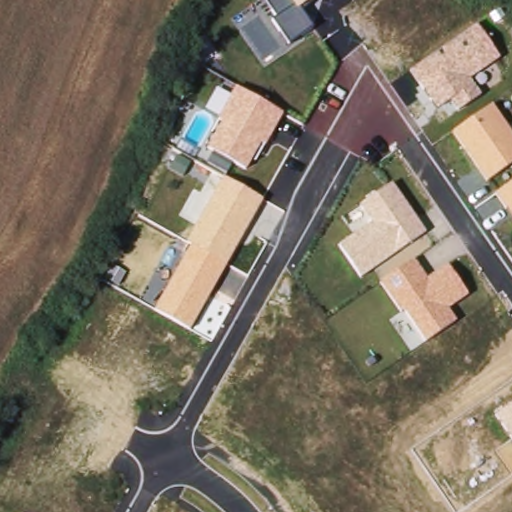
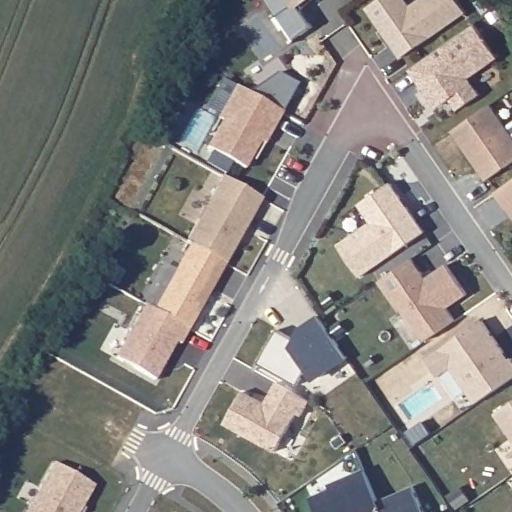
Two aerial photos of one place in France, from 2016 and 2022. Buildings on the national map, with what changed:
unchanged [(277,17),(266,0),(310,0),(300,7),(312,26),(288,44),(272,20),(277,17)]
new [(377,0),(406,0),(410,6),(419,0),(458,0),(466,12),(400,57),(390,43),(381,29),(366,7),(377,0)]
unchanged [(411,71),(477,25),(499,59),(470,79),(481,95),(457,112),(450,100),(437,108),(411,71)]
unchanged [(206,148),(220,125),(216,121),(218,118),(205,110),(217,87),(231,95),(236,86),(283,113),(264,146),(260,144),(246,169),(206,148)]
unchanged [(493,103),(512,132),(512,164),(487,181),(452,131),(493,103)]
unchanged [(191,246),(191,245),(186,243),(223,178),(263,199),(190,328),(154,310),(191,246)]
unchanged [(512,183),(512,212),(498,192),(512,183)]
unchanged [(370,223),(359,205),(392,184),(425,233),(362,275),(339,244),(370,223)]
unchanged [(414,259),(426,278),(448,264),(468,295),(448,309),(456,321),(425,342),(405,310),(404,311),(401,313),(381,281),(414,259)]
new [(187,327),(181,343),(177,341),(156,380),(115,357),(144,303),(154,310),(187,327)]
new [(307,368),(298,383),(259,361),(278,328),(294,336),(301,326),(319,314),(348,356),(320,375),(315,379),(307,368)]
new [(510,359),(512,357),(512,378),(476,402),(452,368),(439,377),(426,358),(482,319),(505,351),(510,359)]
new [(268,406),(271,399),(280,384),(312,402),(303,418),(299,416),(277,454),(227,425),(246,394),(268,406)]
unchanged [(512,403),(512,438),(496,414),(512,403)]
new [(54,463),(93,486),(79,512),(26,512),(54,463)]
new [(385,512),(319,512),(313,497),(333,489),(330,485),(366,471),(380,501),(385,512)]
new [(415,486),(427,512),(385,512),(380,501),(415,486)]
new [(435,510),(436,512),(431,512),(435,510)]

